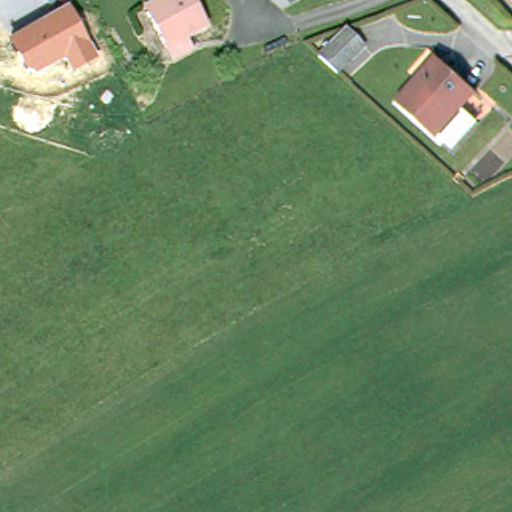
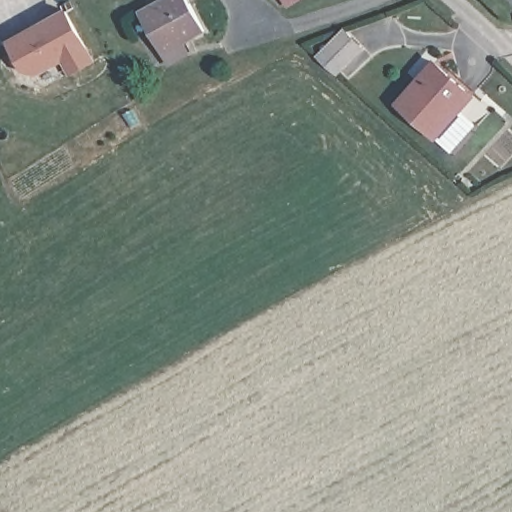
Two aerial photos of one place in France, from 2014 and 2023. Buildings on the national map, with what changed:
unchanged [(186,0),(203,31),(185,42),(191,55),(171,65),(142,14),(167,0),(186,0)]
unchanged [(94,62),(70,74),(63,61),(33,77),(26,72),(10,40),(67,7),(94,62)]
unchanged [(320,57),(343,29),(362,43),(338,73),(320,57)]
unchanged [(442,135),(441,136),(402,104),(431,66),(437,59),(441,61),(478,92),(465,107),(482,120),(480,120),(458,148),(445,137),(442,135)]

